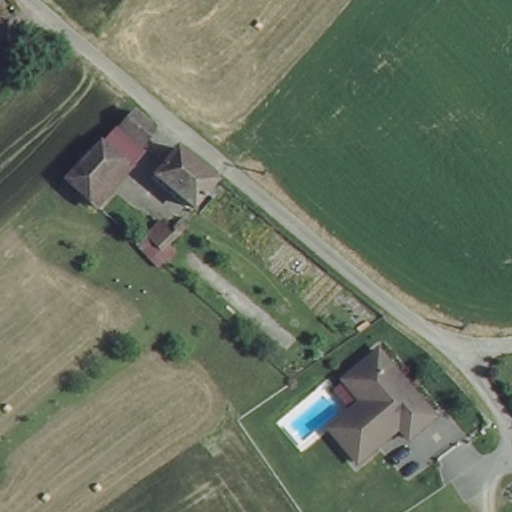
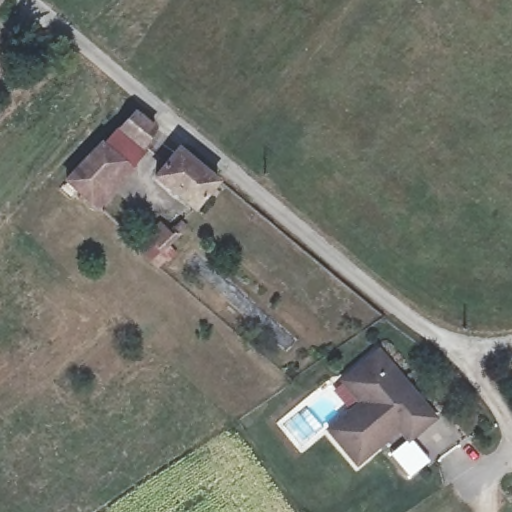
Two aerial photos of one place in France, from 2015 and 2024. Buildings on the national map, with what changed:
unchanged [(130,123),(156,150),(90,202),(65,177),(130,123)]
unchanged [(149,176),(170,152),(215,189),(194,212),(149,176)]
unchanged [(160,220),(180,236),(173,246),(176,252),(160,271),(135,246),(160,220)]
unchanged [(436,415),(405,437),(397,426),(358,457),(331,426),(357,398),(339,376),(380,345),(436,415)]

